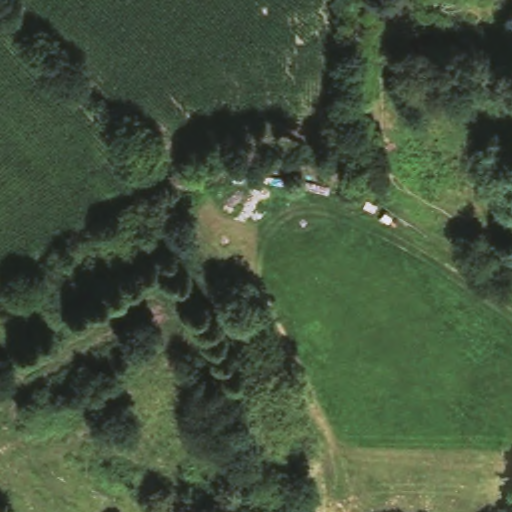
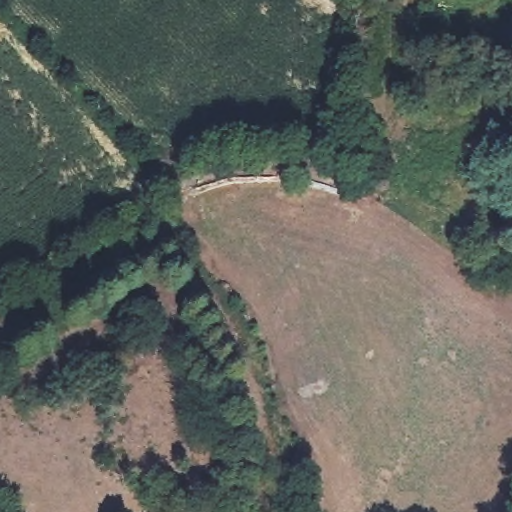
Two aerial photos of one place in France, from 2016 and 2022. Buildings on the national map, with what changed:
unchanged [(373,125),(373,153),(357,153),(360,126),(373,125)]

